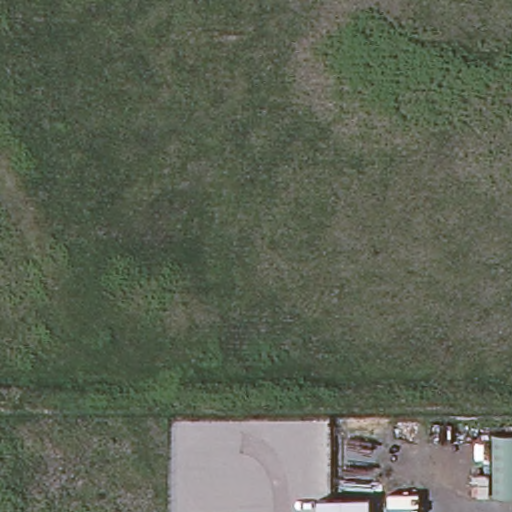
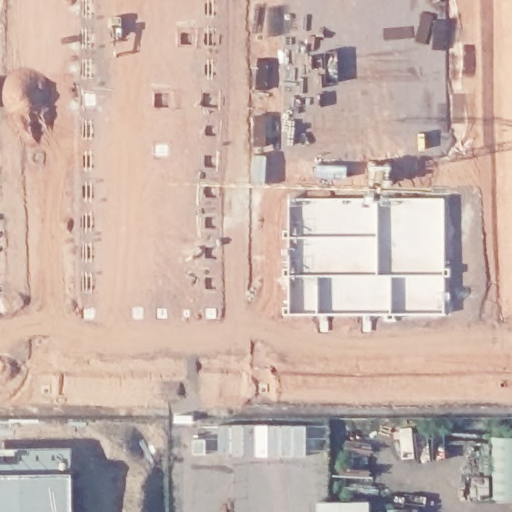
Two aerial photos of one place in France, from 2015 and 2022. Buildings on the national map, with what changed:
new [(444,204),(442,317),(292,317),(290,199),(444,204)]
unchanged [(512,436),(512,499),(490,499),(490,436),(512,436)]
new [(68,512),(0,512),(0,452),(67,454),(68,512)]
unchanged [(368,501),(368,512),(317,512),(317,501),(368,501)]

